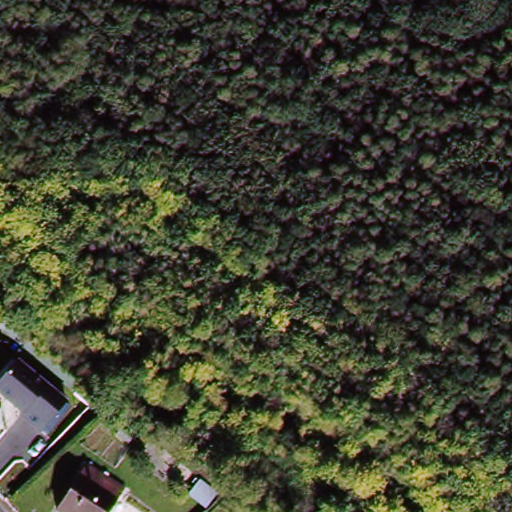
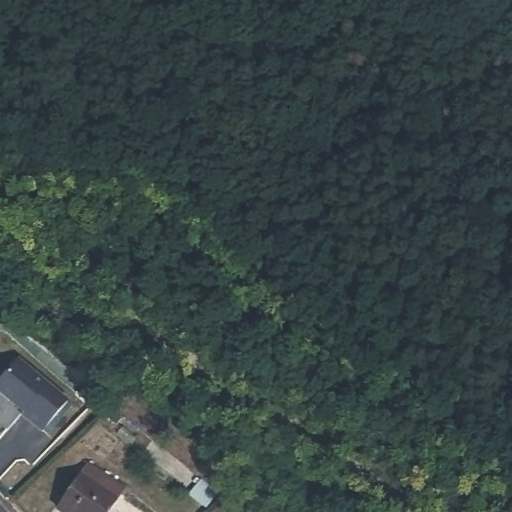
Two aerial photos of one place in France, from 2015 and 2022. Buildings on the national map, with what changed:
unchanged [(70,402),(47,425),(4,385),(22,362),(70,402)]
unchanged [(80,471),(142,512),(53,512),(80,471)]

